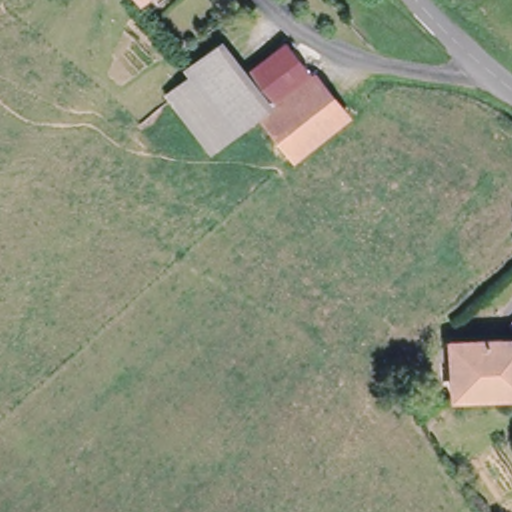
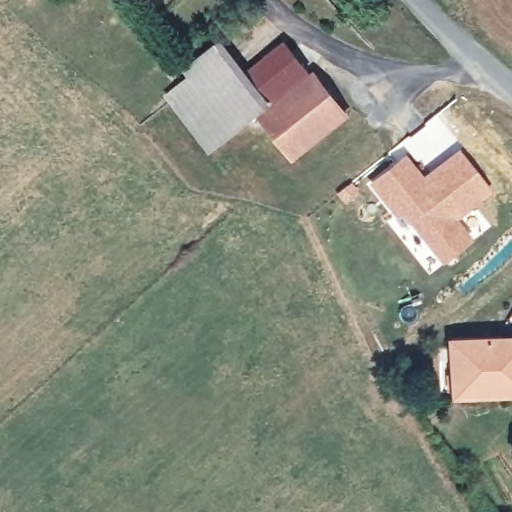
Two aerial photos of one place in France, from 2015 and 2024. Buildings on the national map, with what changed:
unchanged [(260,106),(264,103),(241,73),(283,36),(315,73),(267,113),(260,106)]
unchanged [(230,129),(183,71),(216,45),(241,73),(264,103),(260,106),(245,116),(230,129)]
unchanged [(315,73),(319,69),(352,110),(301,154),(267,113),(315,73)]
new [(214,110),(230,129),(245,116),(260,106),(265,111),(210,154),(165,96),(189,78),(214,110)]
new [(423,176),(459,148),(493,191),(458,219),(475,239),(441,265),(402,213),(396,219),(368,184),(405,154),(423,176)]
unchanged [(512,377),(462,391),(452,348),(512,329),(512,377)]

